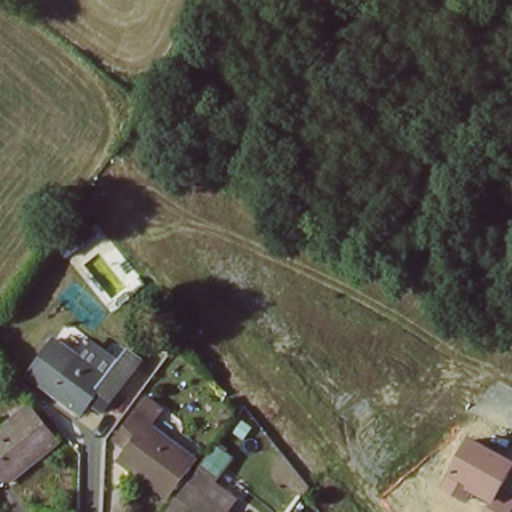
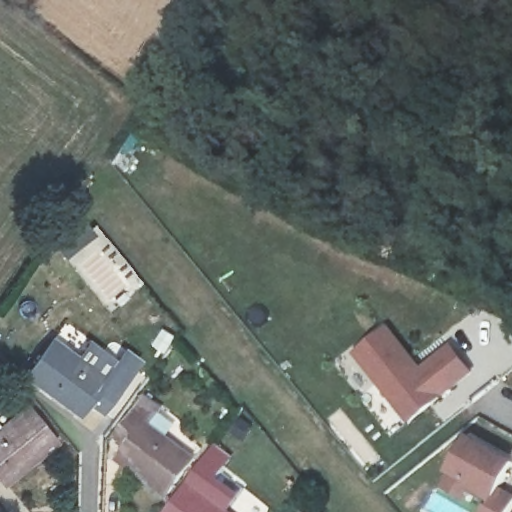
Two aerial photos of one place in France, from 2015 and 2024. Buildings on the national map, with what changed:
new [(380,328),(414,370),(444,346),(463,371),(402,420),(371,380),(375,377),(353,350),(380,328)]
unchanged [(97,397),(83,417),(31,378),(60,340),(111,380),(97,397)]
unchanged [(111,380),(138,340),(152,351),(108,407),(97,397),(111,380)]
unchanged [(168,493),(124,460),(136,442),(125,434),(148,401),(160,410),(152,422),(196,456),(168,493)]
unchanged [(59,447),(8,487),(0,478),(0,438),(32,412),(59,447)]
unchanged [(510,512),(484,512),(489,502),(474,494),(467,503),(440,488),(469,435),(512,459),(512,473),(505,486),(512,491),(512,508),(510,512)]
unchanged [(174,505),(200,470),(212,479),(202,491),(230,512),(183,512),(174,505)]

